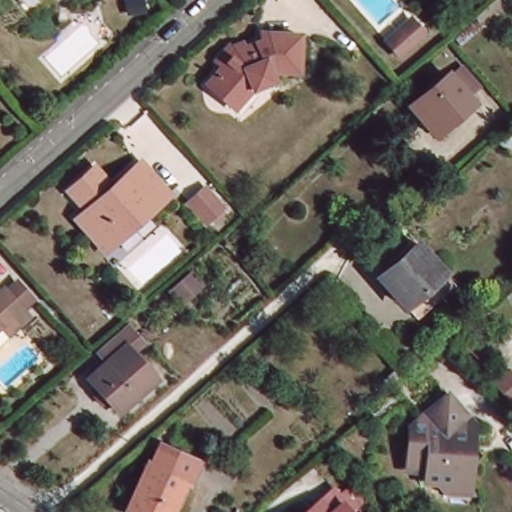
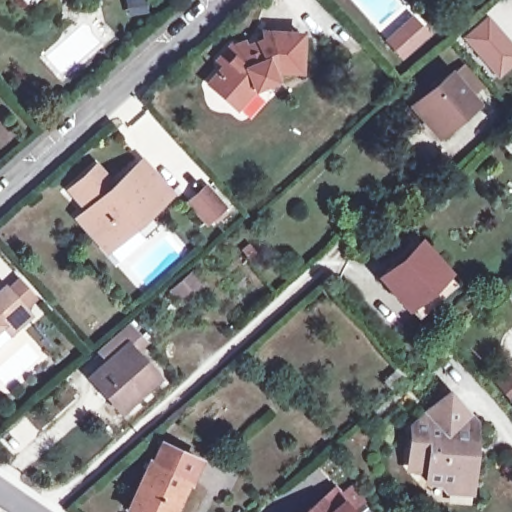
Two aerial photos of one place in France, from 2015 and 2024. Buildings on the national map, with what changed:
new [(512,42),(512,67),(498,79),(462,37),(488,15),(512,42)]
unchanged [(416,19),(425,29),(430,34),(406,56),(392,42),(405,29),(416,19)]
demolished [(457,60),(449,51),(471,31),(478,41),(457,60)]
unchanged [(264,46),(265,38),(303,41),(300,78),(276,76),(271,79),(274,85),(254,94),(236,114),(208,88),(226,70),(219,65),(233,51),(239,56),(264,46)]
unchanged [(457,89),(442,71),(451,63),(466,81),(457,89)]
unchanged [(407,120),(414,114),(445,88),(469,116),(438,141),(431,147),(407,120)]
unchanged [(503,141),(512,132),(512,149),(511,150),(503,141)]
unchanged [(101,237),(82,216),(92,208),(86,201),(74,188),(99,164),(112,178),(118,185),(145,160),(173,192),(119,239),(110,247),(101,237)]
unchanged [(223,205),(207,219),(191,201),(207,187),(223,205)]
unchanged [(417,316),(405,303),(379,274),(404,254),(400,250),(415,238),(418,241),(443,271),(455,283),(417,316)]
unchanged [(179,285),(176,282),(193,268),(204,282),(183,301),(176,293),(178,292),(174,289),(179,285)]
unchanged [(13,338),(15,340),(0,353),(0,299),(9,291),(11,293),(23,283),(40,304),(29,313),(35,320),(13,338)]
unchanged [(116,360),(106,348),(138,321),(155,340),(143,351),(166,378),(128,411),(98,376),(116,360)]
unchanged [(512,374),(512,399),(511,400),(494,379),(507,368),(512,374)]
unchanged [(453,493),(444,483),(429,483),(431,472),(417,471),(413,465),(414,425),(454,393),(454,392),(479,421),(481,422),(478,445),(473,450),(473,456),(477,457),(476,484),(474,494),(453,493)]
unchanged [(131,494),(148,461),(150,462),(159,443),(198,460),(188,481),(184,480),(171,512),(130,512),(125,510),(131,494)]
unchanged [(313,505),(320,499),(329,510),(331,512),(304,512),(313,505)]
unchanged [(340,501),(350,512),(331,512),(329,510),(340,501)]

